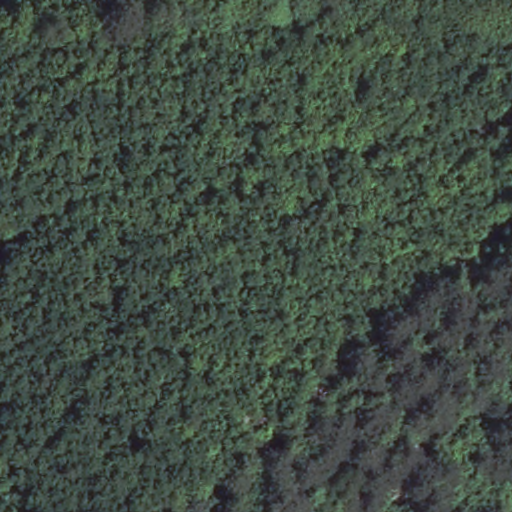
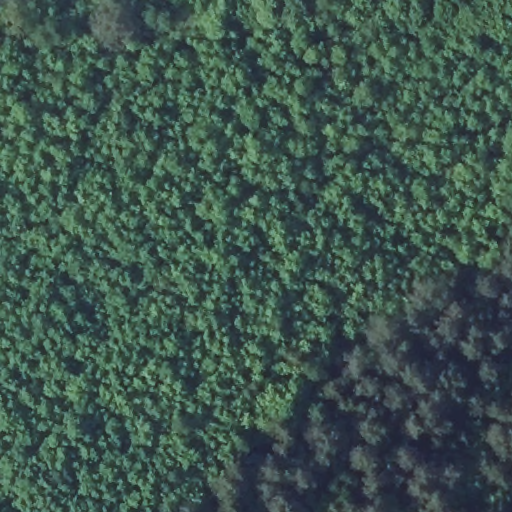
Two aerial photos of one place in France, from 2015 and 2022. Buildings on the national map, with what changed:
[]

